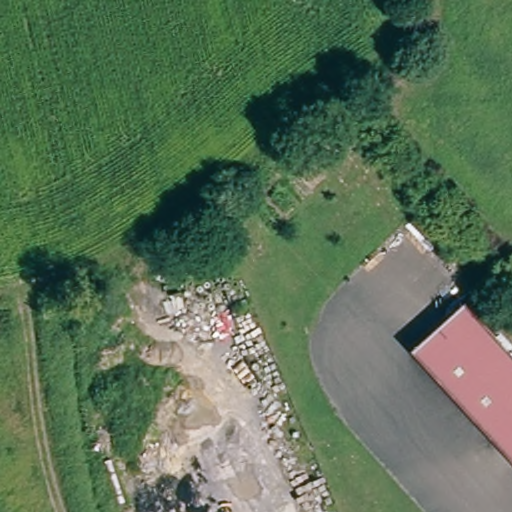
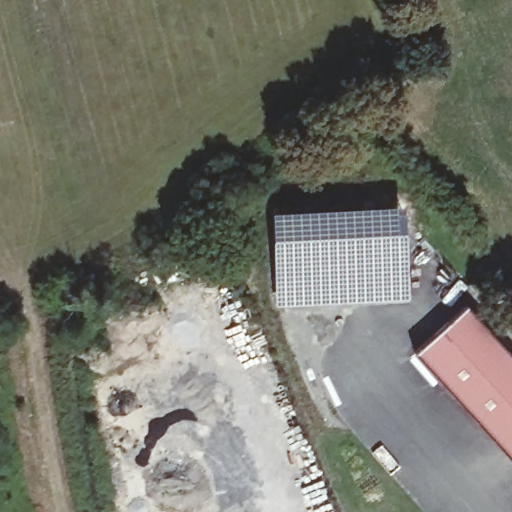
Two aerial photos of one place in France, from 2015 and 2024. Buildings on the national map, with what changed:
new [(271,209),(403,204),(408,299),(275,304),(271,209)]
unchanged [(416,349),(468,301),(512,348),(512,450),(416,349)]

